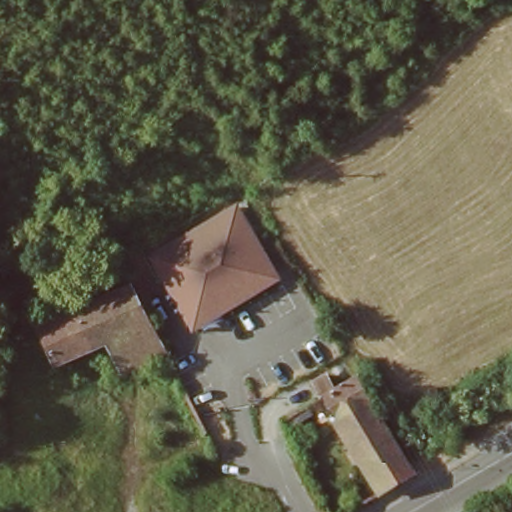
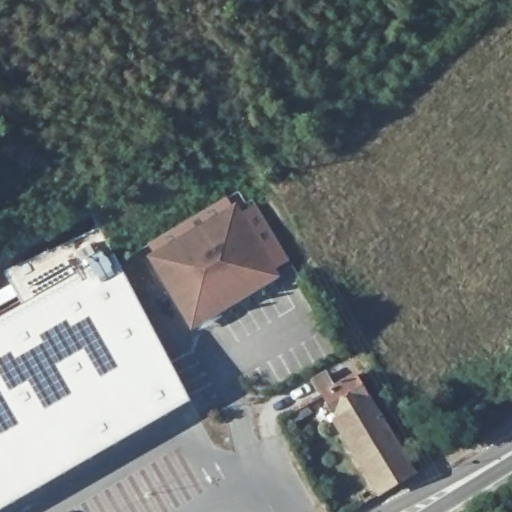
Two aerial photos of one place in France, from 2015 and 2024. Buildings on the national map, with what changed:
unchanged [(192,334),(145,256),(235,205),(281,279),(192,334)]
new [(98,229),(113,255),(191,403),(2,512),(0,512),(0,318),(23,305),(5,272),(98,229)]
demolished [(57,363),(39,325),(47,322),(54,319),(132,285),(141,302),(149,319),(110,337),(57,363)]
unchanged [(358,381),(370,402),(393,440),(416,479),(405,485),(380,500),(332,421),(337,418),(327,400),(325,401),(316,386),(328,380),(336,395),(345,389),(358,381)]
demolished [(317,400),(324,412),(288,433),(281,420),(317,400)]

